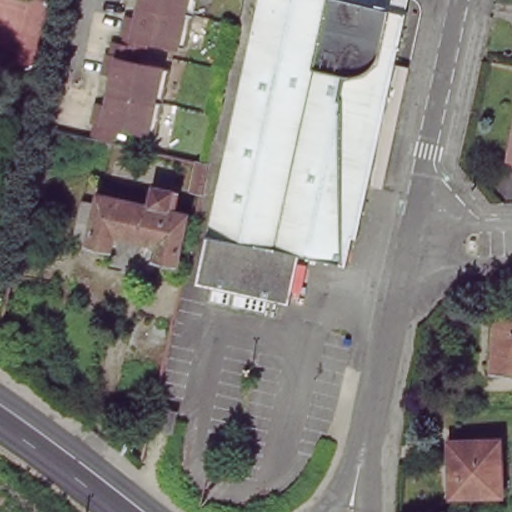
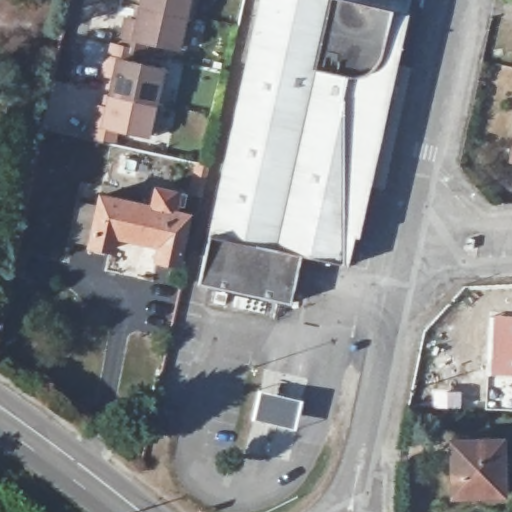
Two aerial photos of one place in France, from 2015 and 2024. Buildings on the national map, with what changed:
unchanged [(148,0),(201,0),(196,21),(146,10),(148,0)]
unchanged [(259,0),(407,0),(395,62),(410,66),(383,185),(369,181),(358,233),(353,232),(347,262),(301,252),(290,300),(198,280),(259,0)]
unchanged [(189,53),(128,39),(131,23),(142,26),(146,10),(196,21),(189,53)]
unchanged [(115,81),(102,78),(106,61),(168,75),(162,108),(111,97),(115,81)]
unchanged [(156,140),(93,127),(96,111),(107,114),(111,97),(162,108),(156,140)]
unchanged [(512,161),(510,161),(512,152),(512,161)]
unchanged [(193,162),(208,165),(204,183),(190,180),(193,162)]
unchanged [(148,206),(153,186),(176,191),(172,212),(189,216),(178,264),(156,260),(159,246),(116,236),(113,250),(73,241),(82,204),(95,206),(97,195),(148,206)]
unchanged [(512,319),(512,373),(493,373),(495,318),(512,319)]
new [(301,400),(295,428),(253,419),(259,390),(301,400)]
unchanged [(160,410),(177,414),(172,435),(155,431),(160,410)]
unchanged [(447,445),(497,437),(503,491),(454,498),(447,445)]

